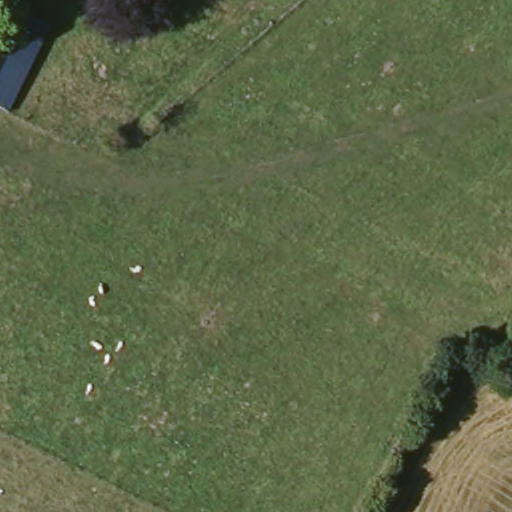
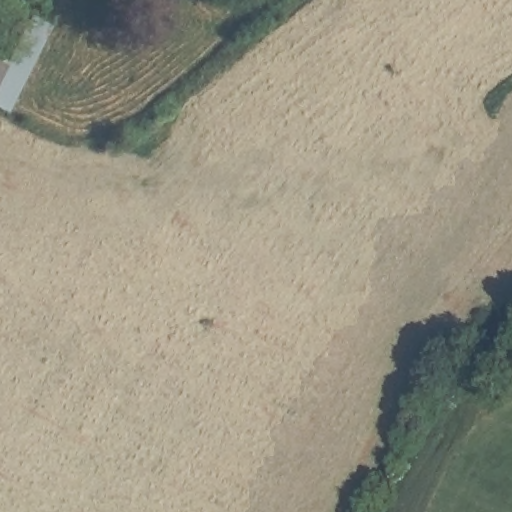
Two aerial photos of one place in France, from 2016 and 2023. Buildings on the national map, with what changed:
unchanged [(0,107),(0,55),(2,55),(25,11),(49,24),(6,110),(0,107)]

